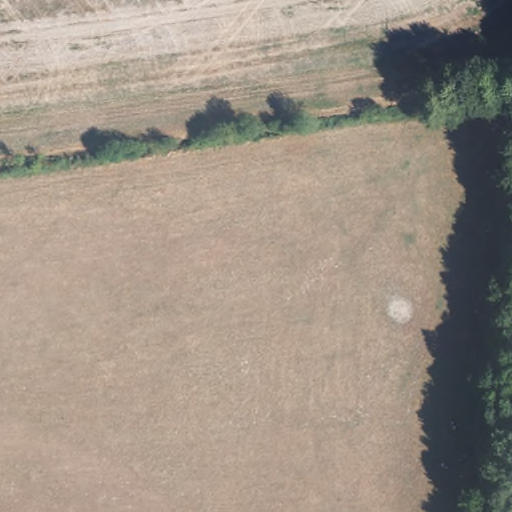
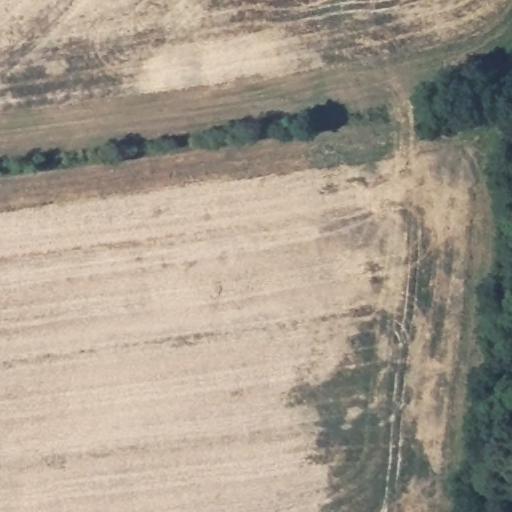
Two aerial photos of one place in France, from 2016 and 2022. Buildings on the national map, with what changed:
[]

